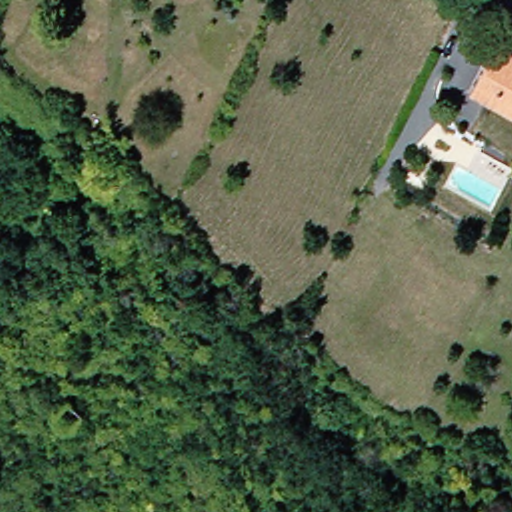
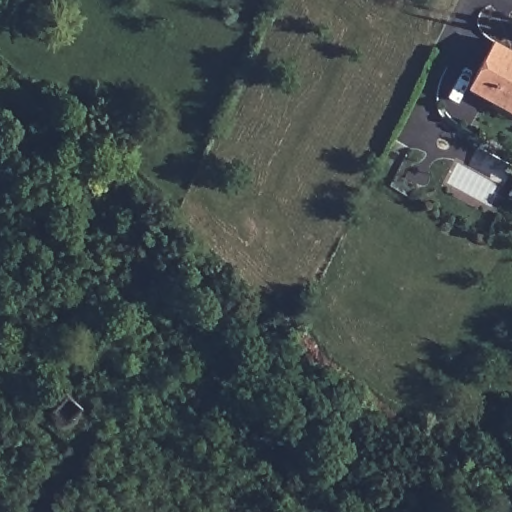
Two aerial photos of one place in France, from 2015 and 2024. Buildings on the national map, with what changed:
unchanged [(512,46),(512,107),(479,88),(505,42),(512,46)]
unchanged [(512,156),(512,186),(477,166),(488,143),(512,156)]

